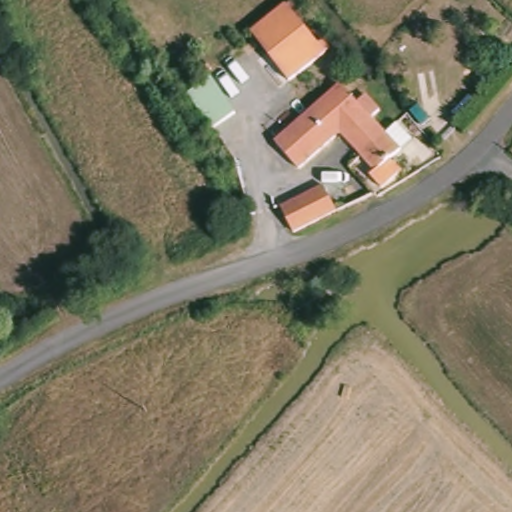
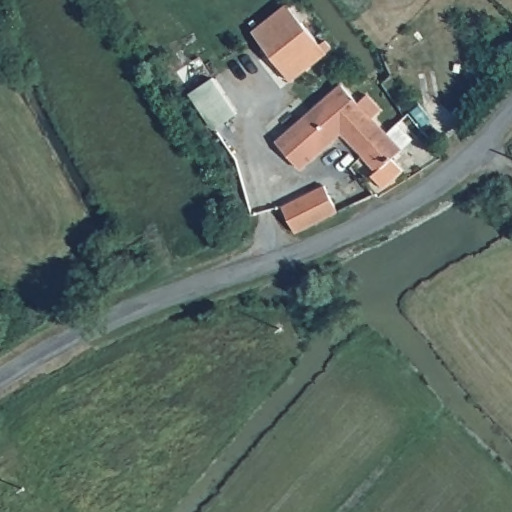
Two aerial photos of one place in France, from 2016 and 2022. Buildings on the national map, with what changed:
unchanged [(287,4),(323,55),(288,80),(250,31),(287,4)]
unchanged [(211,77),(234,116),(210,129),(187,92),(211,77)]
unchanged [(357,105),(364,97),(381,114),(372,121),(402,154),(394,162),(402,174),(381,194),(366,177),(374,170),(340,135),(297,170),(273,144),(337,85),(357,105)]
unchanged [(349,211),(298,240),(282,212),(333,184),(349,211)]

